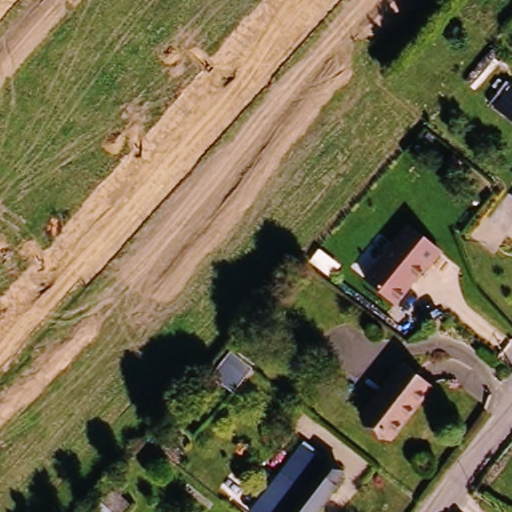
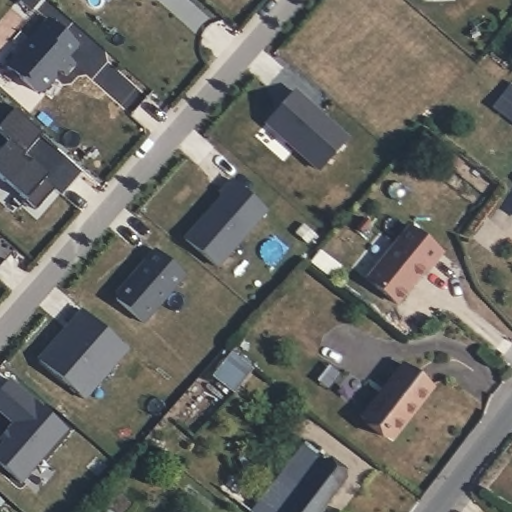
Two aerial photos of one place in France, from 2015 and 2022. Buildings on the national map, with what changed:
new [(48,14),(78,41),(67,53),(74,59),(65,70),(61,67),(43,87),(36,88),(6,62),(48,14)]
new [(295,92),(348,138),(319,171),(266,124),(295,92)]
new [(45,175),(56,184),(36,206),(0,174),(0,146),(1,145),(0,144),(0,113),(10,101),(43,130),(26,150),(49,170),(45,175)]
new [(221,192),(218,189),(231,175),(266,206),(216,263),(183,234),(221,192)]
unchanged [(409,237),(441,264),(429,280),(426,279),(397,316),(366,290),(409,237)]
new [(115,289),(126,277),(128,278),(133,272),(131,270),(153,245),(184,272),(143,320),(115,295),(115,289)]
new [(81,305),(127,345),(83,395),(37,355),(81,305)]
unchanged [(233,388),(211,371),(230,347),(252,363),(233,388)]
unchanged [(431,388),(391,440),(361,417),(401,365),(431,388)]
new [(13,418),(0,407),(0,386),(10,375),(66,425),(20,477),(0,460),(0,441),(3,438),(0,435),(0,433),(6,427),(13,418)]
unchanged [(343,478),(317,512),(251,512),(250,511),(279,474),(300,491),(303,487),(281,471),(298,450),(319,466),(322,462),(343,478)]
unchanged [(120,512),(100,512),(99,511),(109,501),(103,495),(113,485),(131,502),(120,512)]

